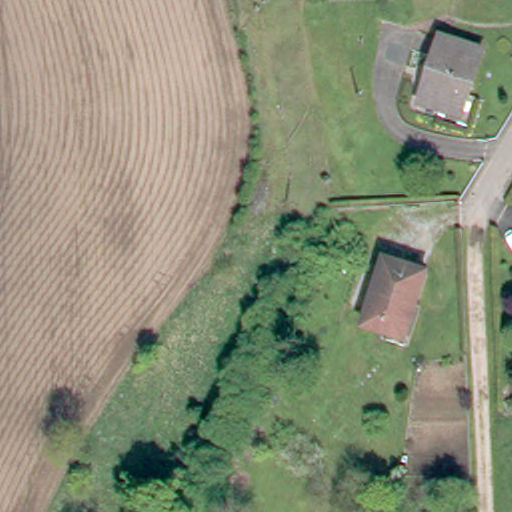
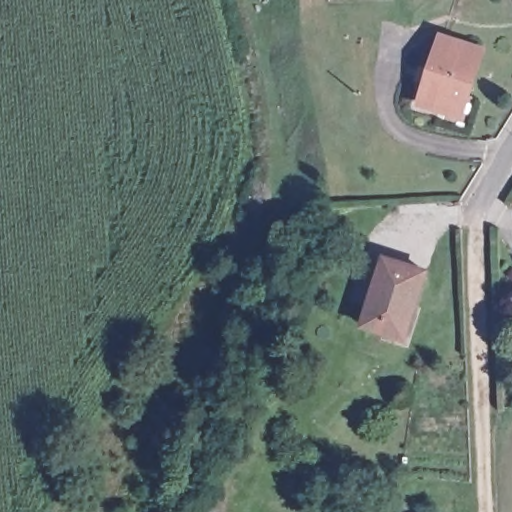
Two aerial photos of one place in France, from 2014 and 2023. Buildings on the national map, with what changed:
unchanged [(425,95),(445,31),(483,43),(463,109),(425,95)]
unchanged [(503,202),(512,187),(512,207),(503,202)]
unchanged [(361,318),(382,252),(423,266),(402,332),(361,318)]

